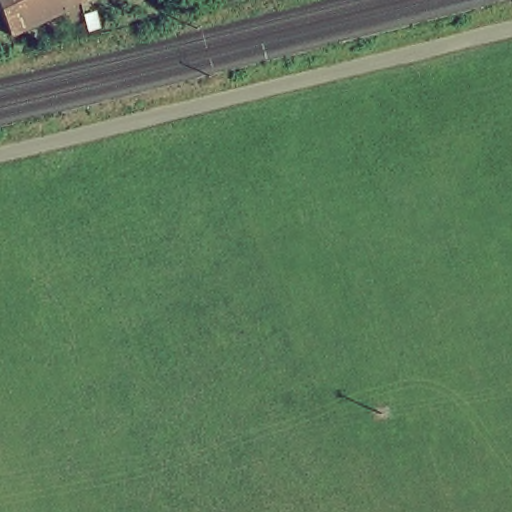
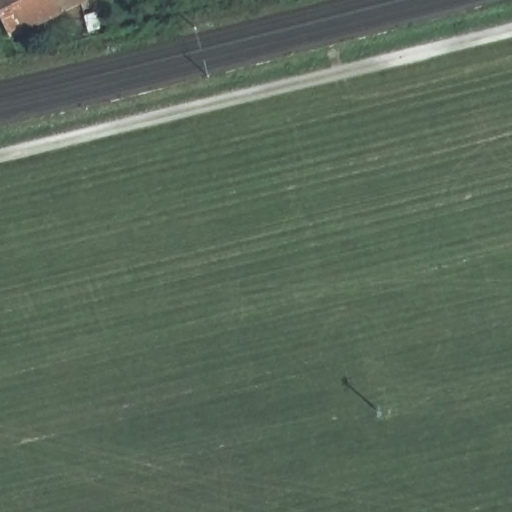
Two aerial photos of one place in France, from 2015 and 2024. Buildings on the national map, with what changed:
unchanged [(0,0),(74,0),(78,8),(6,40),(0,27),(0,0)]

